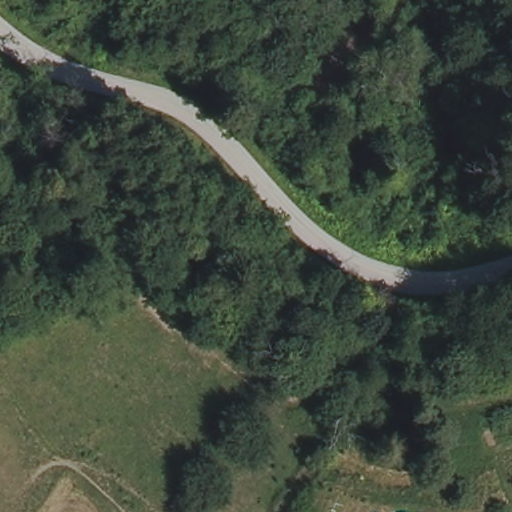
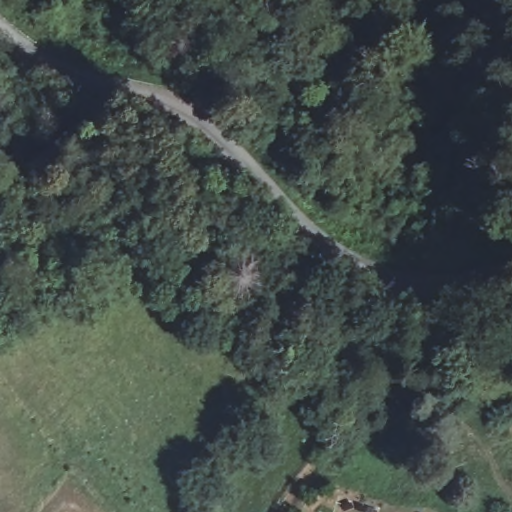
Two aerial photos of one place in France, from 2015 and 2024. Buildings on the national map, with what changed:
[]

